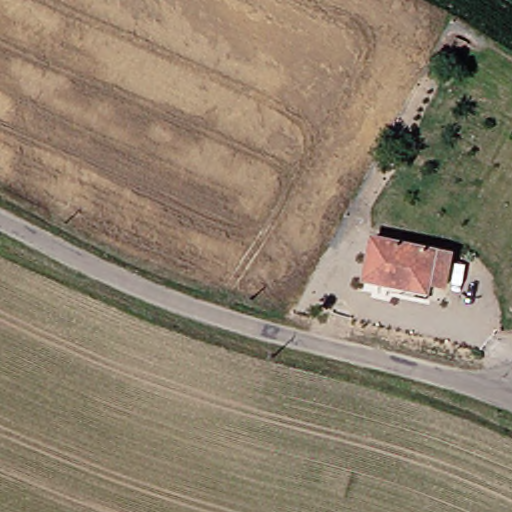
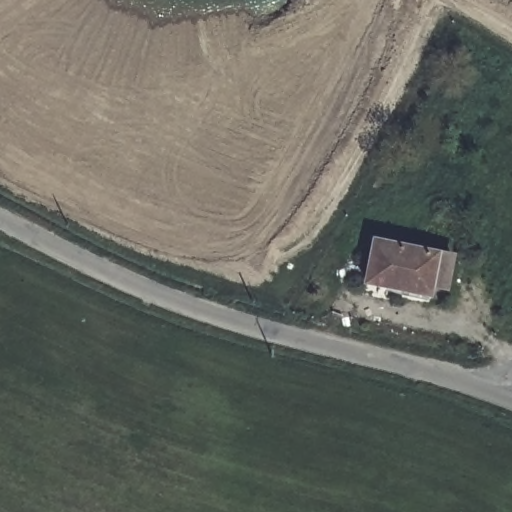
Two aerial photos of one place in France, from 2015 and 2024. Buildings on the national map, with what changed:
unchanged [(398,277),(372,273),(378,233),(436,242),(437,237),(444,239),(439,275),(437,290),(424,288),(397,285),(398,277)]

